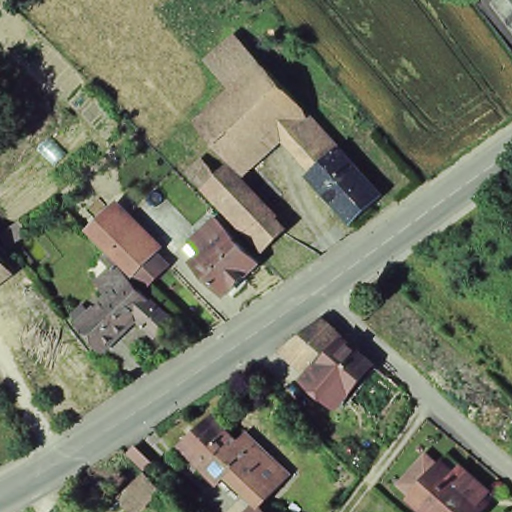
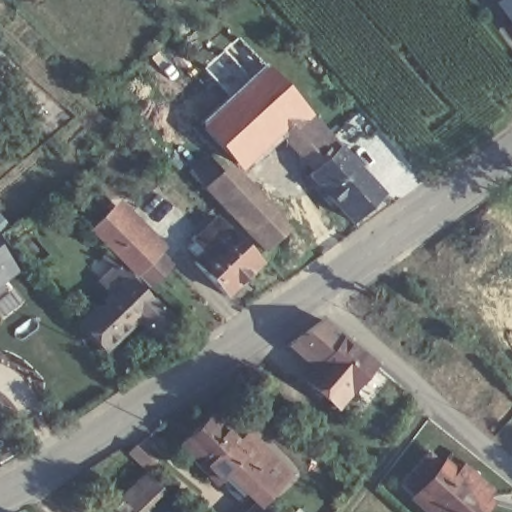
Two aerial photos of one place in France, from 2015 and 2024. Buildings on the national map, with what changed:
unchanged [(510,0),(512,0),(512,3),(510,0)]
unchanged [(512,5),(512,18),(506,10),(512,5)]
unchanged [(205,58),(233,32),(263,64),(235,90),(205,58)]
unchanged [(377,191),(348,218),(305,169),(311,162),(288,126),(278,115),(231,158),(200,122),(235,90),(263,64),(295,99),(293,100),(301,110),(305,108),(377,191)]
unchanged [(260,245),(200,184),(216,168),(276,231),(260,245)]
unchanged [(161,253),(140,274),(95,230),(117,209),(161,253)]
unchanged [(191,250),(183,242),(213,213),(255,257),(220,290),(190,257),(198,249),(196,246),(191,250)]
unchanged [(0,268),(0,253),(7,263),(0,268)]
unchanged [(164,334),(146,314),(108,348),(70,306),(90,288),(92,292),(122,263),(159,301),(177,320),(164,334)]
unchanged [(351,391),(347,388),(334,404),(305,381),(322,359),(297,339),(308,329),(318,320),(340,338),(373,364),(351,391)]
unchanged [(379,422),(356,404),(380,372),(404,389),(379,422)]
unchanged [(228,473),(220,480),(178,440),(210,409),(240,437),(246,429),(290,470),(260,502),(228,473)]
unchanged [(170,490),(141,512),(138,512),(118,492),(147,466),(170,490)]
unchanged [(448,474),(455,467),(493,501),(487,509),(491,512),(421,512),(418,509),(448,474)]
unchanged [(268,509),(271,512),(266,512),(268,509)]

